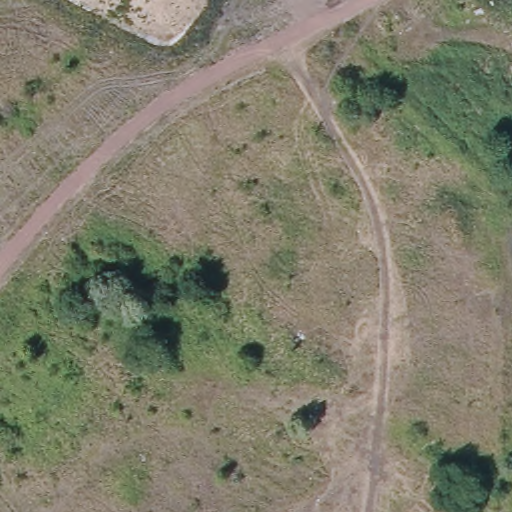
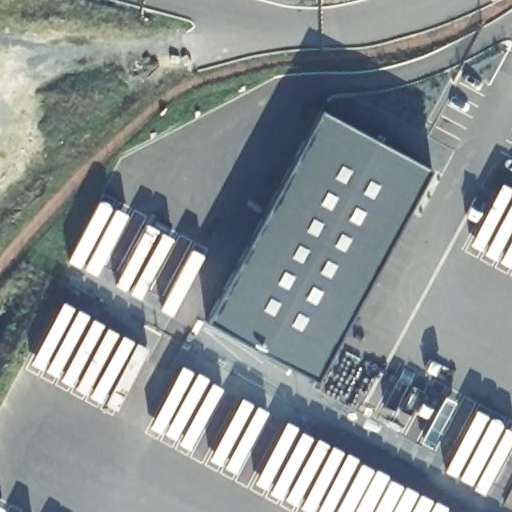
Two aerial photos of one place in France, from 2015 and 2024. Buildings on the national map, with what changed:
new [(430,169),(315,379),(207,318),(320,109),(430,169)]

